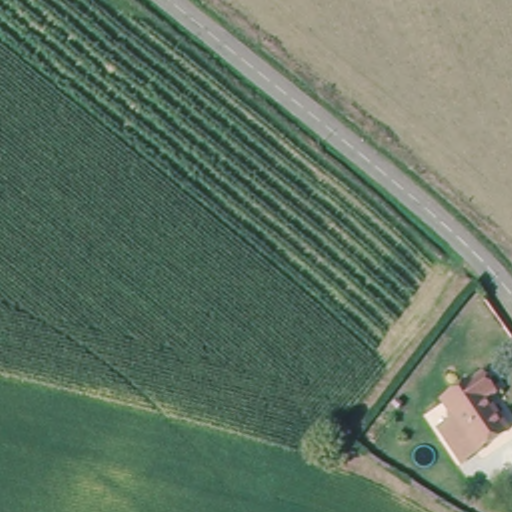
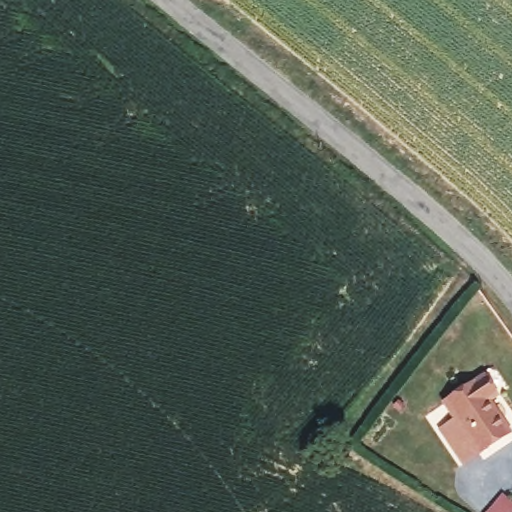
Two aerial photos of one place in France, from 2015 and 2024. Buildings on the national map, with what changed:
unchanged [(493,397),(485,403),(505,437),(459,468),(441,436),(453,426),(442,406),(482,380),(493,397)]
new [(512,502),(512,512),(486,512),(502,493),(512,502)]

